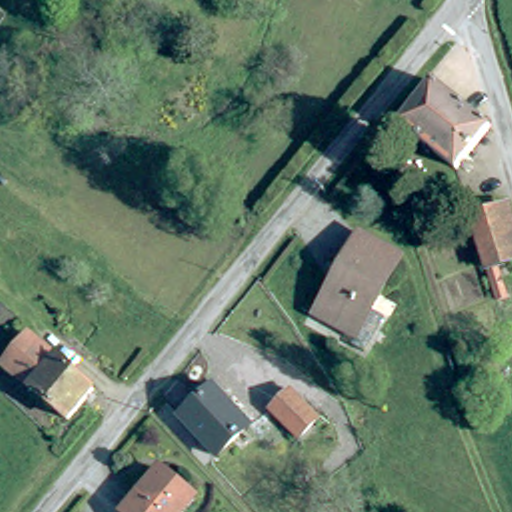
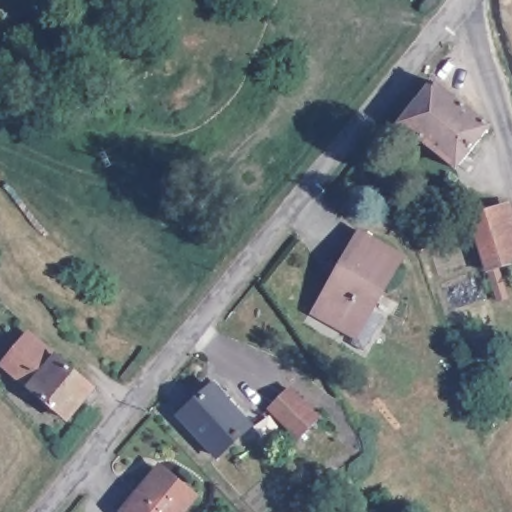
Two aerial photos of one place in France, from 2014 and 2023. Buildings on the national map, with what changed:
unchanged [(426,77),(484,121),(485,122),(450,165),(392,121),(426,77)]
unchanged [(500,206),(512,245),(512,263),(498,267),(507,295),(498,298),(472,216),(500,206)]
unchanged [(347,338),(352,330),(317,311),(310,307),(336,262),(354,230),(395,252),(367,303),(380,311),(360,346),(347,338)]
unchanged [(7,366),(32,334),(98,389),(72,420),(7,366)]
unchanged [(490,352),(479,375),(469,371),(479,347),(490,352)]
unchanged [(209,382),(245,419),(212,450),(176,413),(209,382)]
unchanged [(320,417),(299,438),(270,409),(290,388),(320,417)]
unchanged [(182,512),(126,512),(125,511),(160,468),(195,497),(182,512)]

